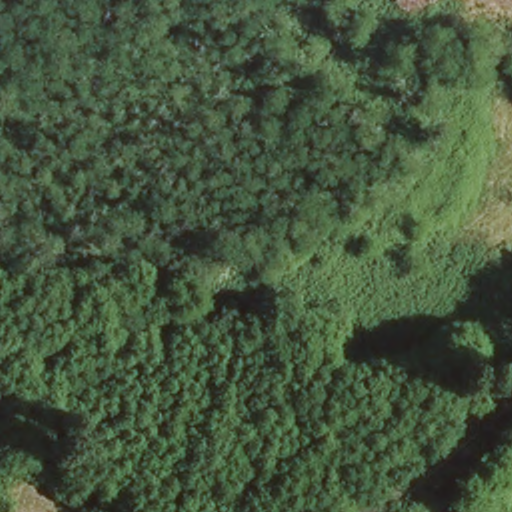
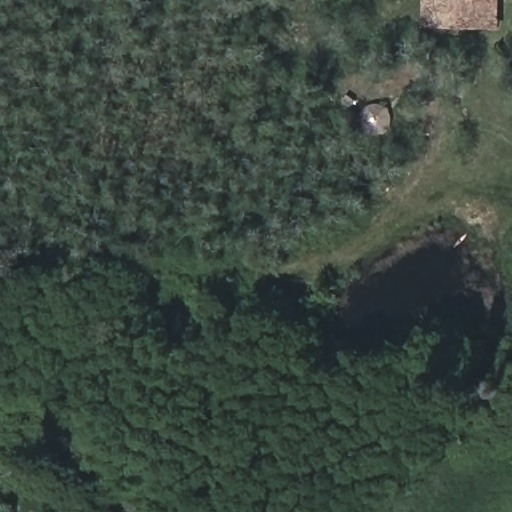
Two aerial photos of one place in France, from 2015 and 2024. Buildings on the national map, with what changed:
demolished [(419,20),(391,7),(395,0),(428,0),(419,20)]
new [(497,28),(422,26),(423,0),(498,0),(497,28)]

